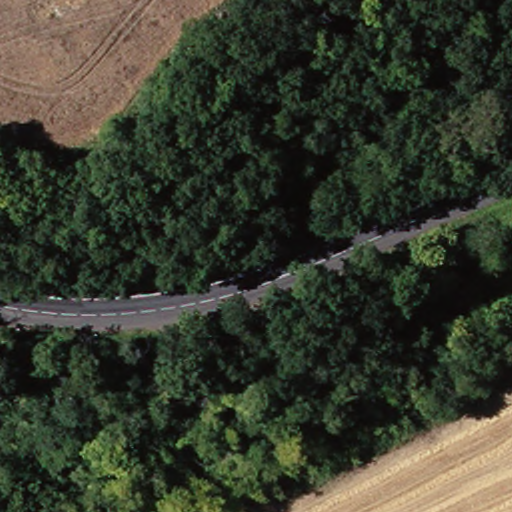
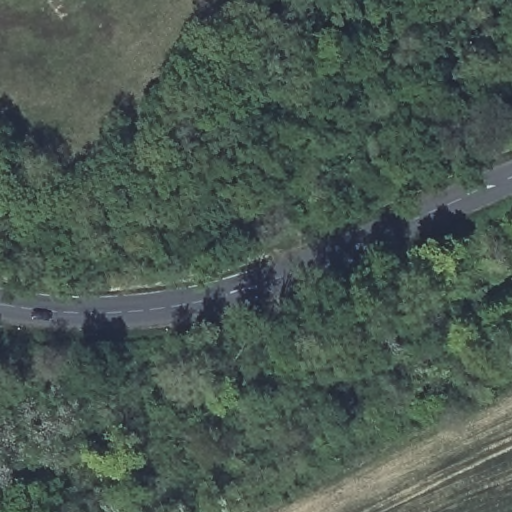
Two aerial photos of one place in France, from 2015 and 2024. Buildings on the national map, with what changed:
[]

